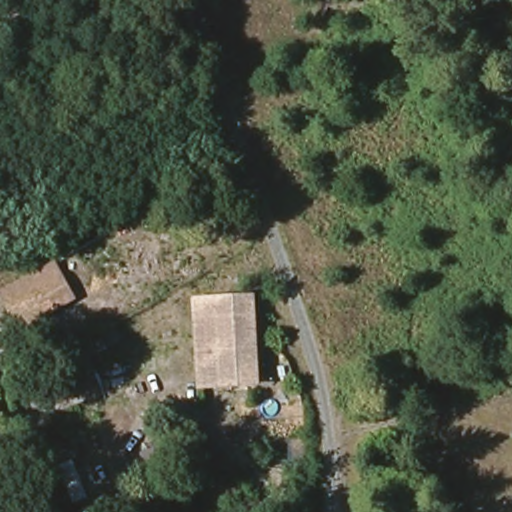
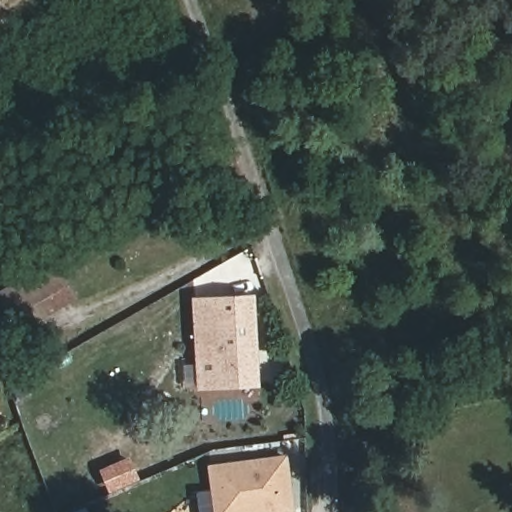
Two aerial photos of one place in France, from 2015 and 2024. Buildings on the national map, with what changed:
unchanged [(55,263),(71,286),(15,316),(3,293),(55,263)]
unchanged [(193,380),(195,294),(252,296),(250,348),(232,347),(231,383),(193,380)]
new [(297,512),(216,512),(210,466),(288,457),(297,512)]

